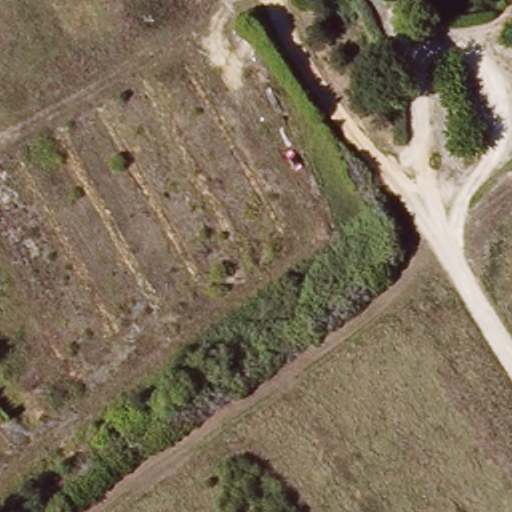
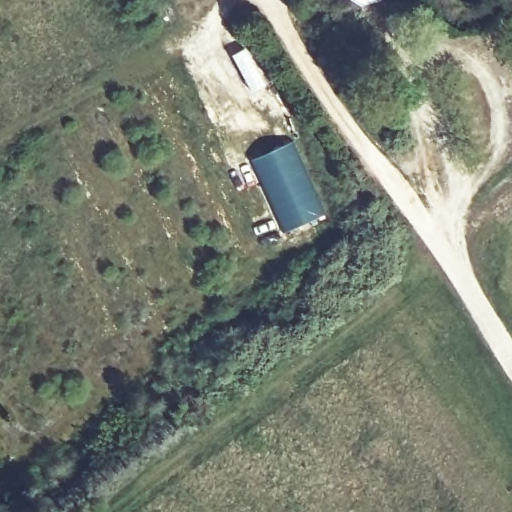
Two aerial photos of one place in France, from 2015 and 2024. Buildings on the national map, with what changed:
demolished [(361,7),(358,0),(384,0),(383,2),(361,7)]
new [(247,45),(270,82),(251,92),(231,54),(247,45)]
new [(293,139),(327,214),(282,233),(249,159),(293,139)]

